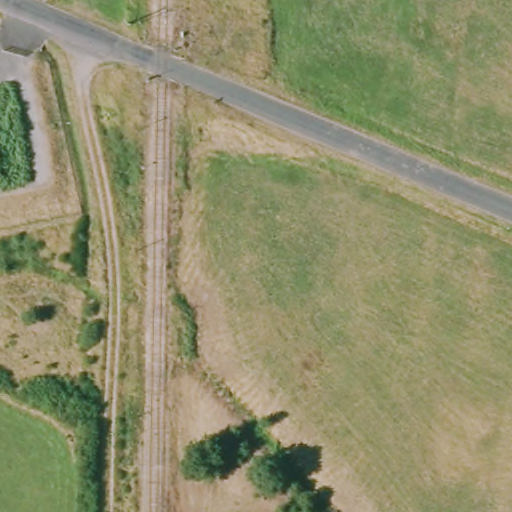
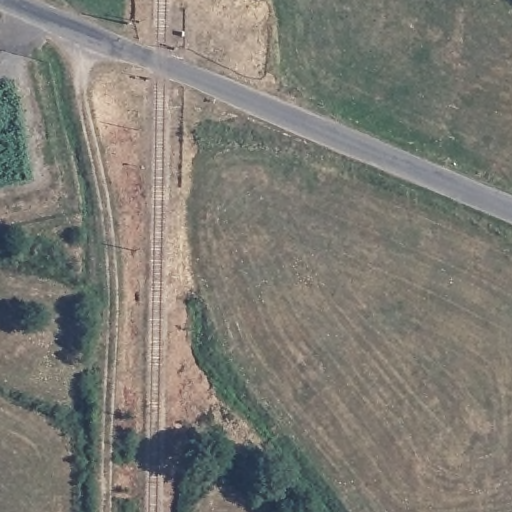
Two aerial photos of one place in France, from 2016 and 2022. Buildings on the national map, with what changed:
unchanged [(210,48),(216,48),(216,55),(210,54),(210,48)]

